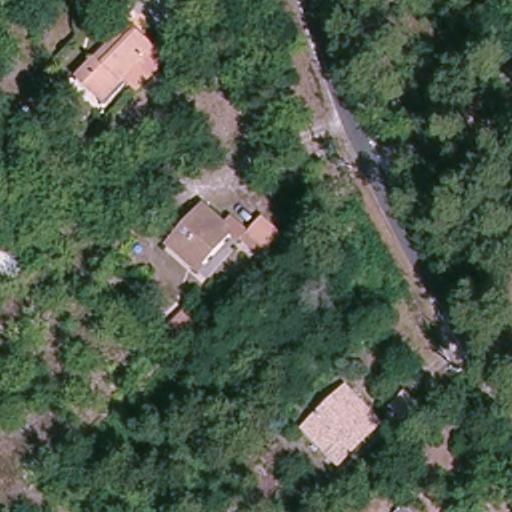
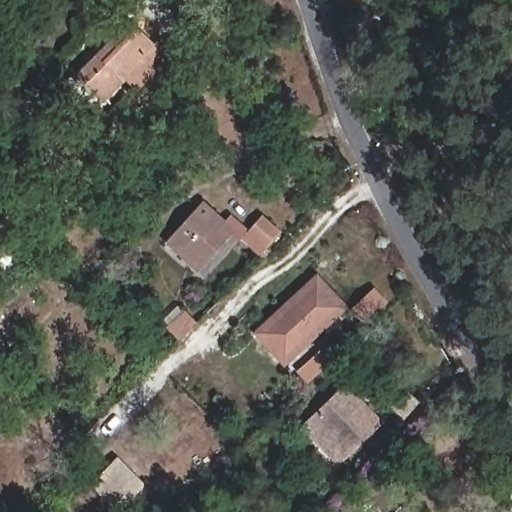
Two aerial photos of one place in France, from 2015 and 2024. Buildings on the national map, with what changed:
unchanged [(101,95),(79,70),(90,61),(131,26),(140,35),(154,52),(101,95)]
unchanged [(166,239),(175,231),(190,218),(207,202),(226,222),(231,227),(235,224),(239,220),(243,225),(253,237),(246,243),(238,234),(202,265),(195,272),(166,239)]
new [(283,367),(252,333),(316,272),(348,307),(283,367)]
unchanged [(310,421),(340,391),(377,427),(346,458),(310,421)]
unchanged [(398,409),(413,395),(425,406),(409,422),(398,409)]
new [(117,455),(145,485),(120,508),(92,479),(117,455)]
unchanged [(413,512),(406,512),(410,508),(413,512)]

